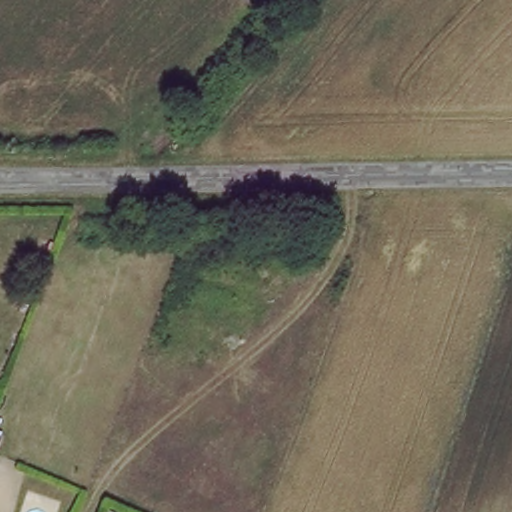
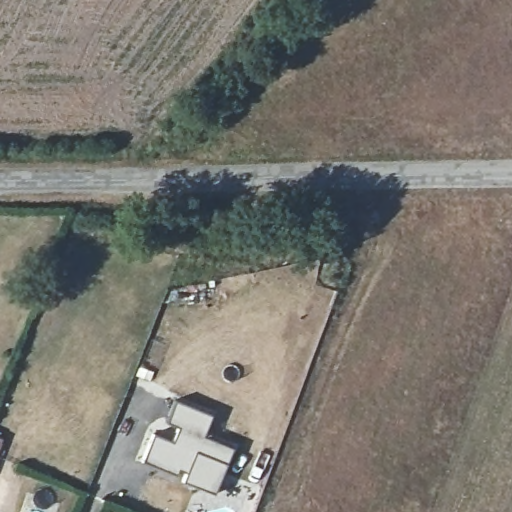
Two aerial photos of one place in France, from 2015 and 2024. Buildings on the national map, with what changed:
new [(153,434),(171,442),(178,427),(164,422),(173,400),(210,415),(201,436),(233,448),(213,494),(181,481),(186,472),(178,470),(176,473),(141,461),(153,434)]
unchanged [(0,453),(0,434),(7,436),(0,453)]
new [(108,511),(111,512),(107,512),(108,511)]

